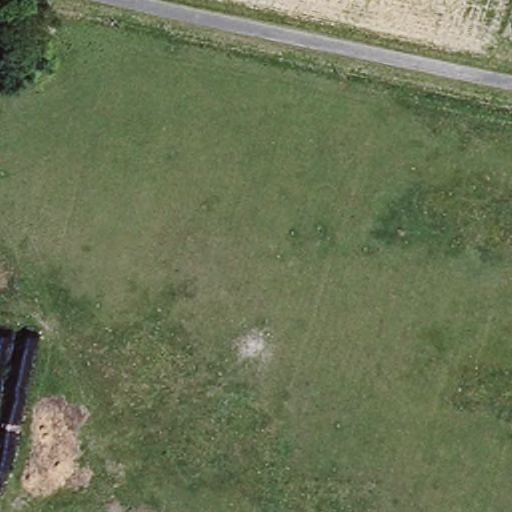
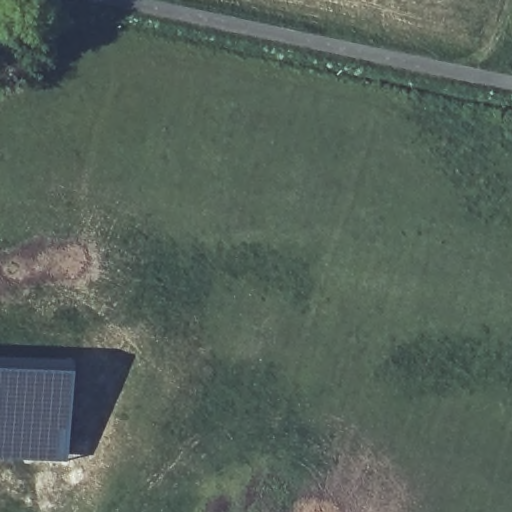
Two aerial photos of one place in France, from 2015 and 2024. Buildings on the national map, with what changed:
new [(70,370),(66,462),(0,460),(0,367),(70,370)]

